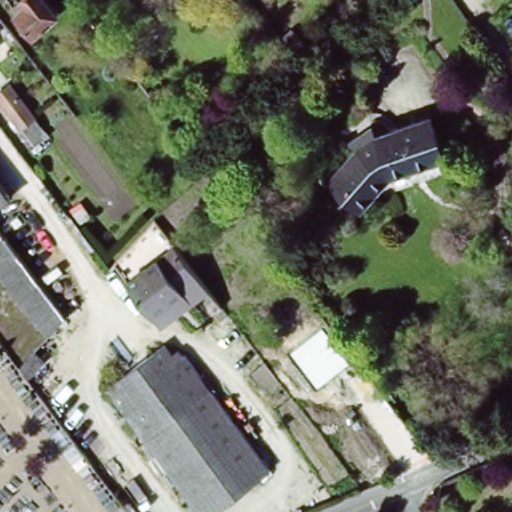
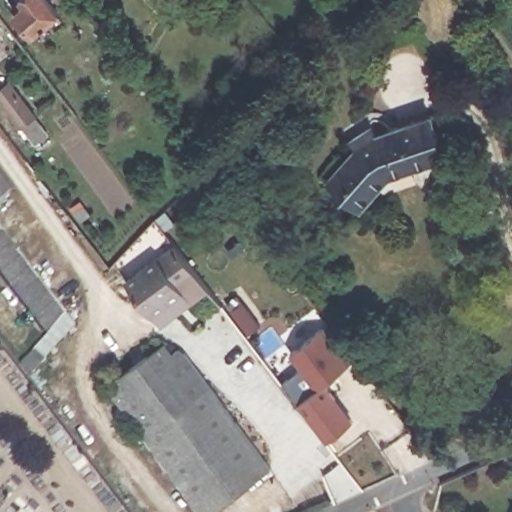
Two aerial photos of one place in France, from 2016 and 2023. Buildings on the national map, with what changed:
unchanged [(61,13),(37,34),(17,7),(25,0),(58,0),(54,4),(61,13)]
unchanged [(36,116),(50,135),(36,146),(21,127),(0,101),(0,89),(10,81),(36,116)]
unchanged [(432,115),(448,157),(396,176),(362,212),(332,184),(363,151),(360,148),(355,142),(371,125),(377,130),(379,133),(432,115)]
unchanged [(0,209),(0,181),(13,199),(0,209)]
unchanged [(14,288),(0,271),(0,226),(36,271),(14,288)]
unchanged [(175,245),(199,275),(182,288),(190,298),(160,321),(152,311),(129,281),(175,245)]
unchanged [(72,318),(52,340),(14,288),(36,271),(72,318)]
new [(324,326),(351,361),(320,385),(292,350),(324,326)]
unchanged [(205,512),(204,512),(106,385),(127,368),(162,341),(174,357),(182,351),(268,464),(245,481),(205,512)]
new [(320,385),(326,380),(354,419),(328,440),(282,381),(304,366),(320,385)]

